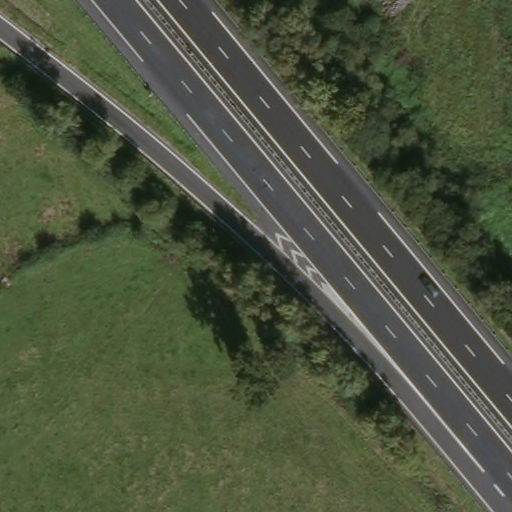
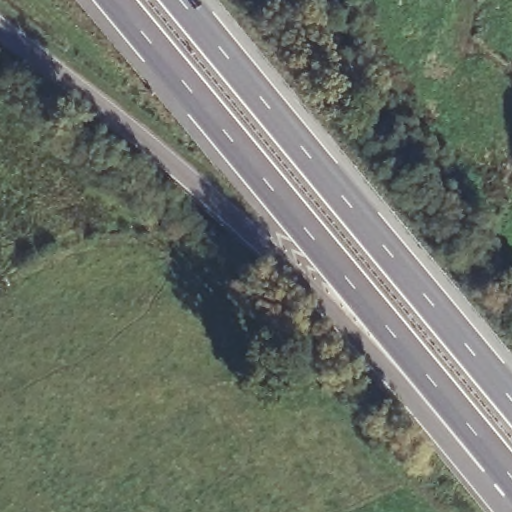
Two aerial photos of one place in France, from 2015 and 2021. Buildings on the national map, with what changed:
[]

